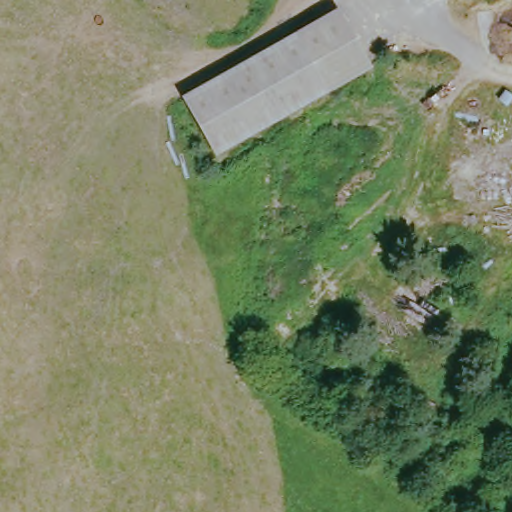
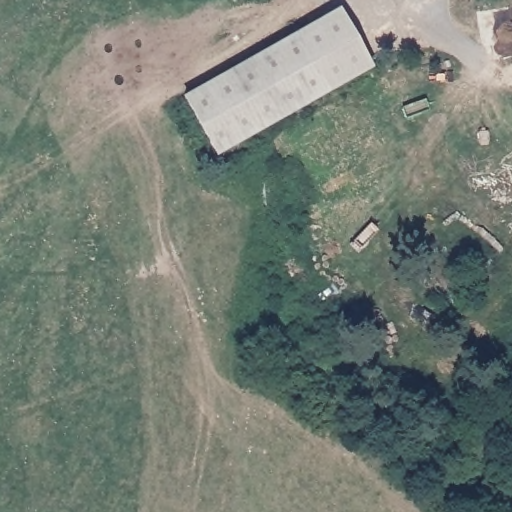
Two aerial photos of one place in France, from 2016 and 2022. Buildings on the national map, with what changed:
unchanged [(338,9),(371,69),(329,91),(291,31),(338,9)]
unchanged [(291,31),(329,91),(214,157),(180,99),(291,31)]

